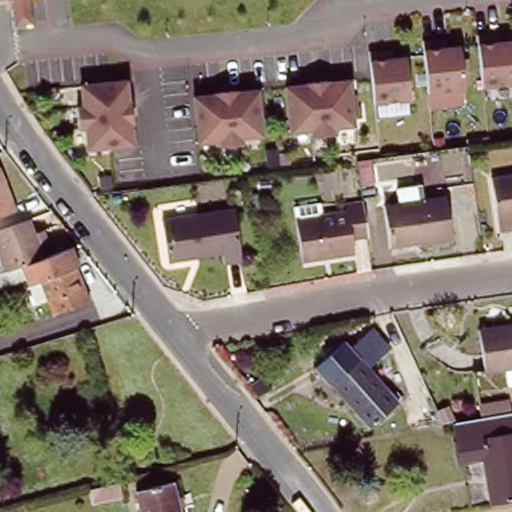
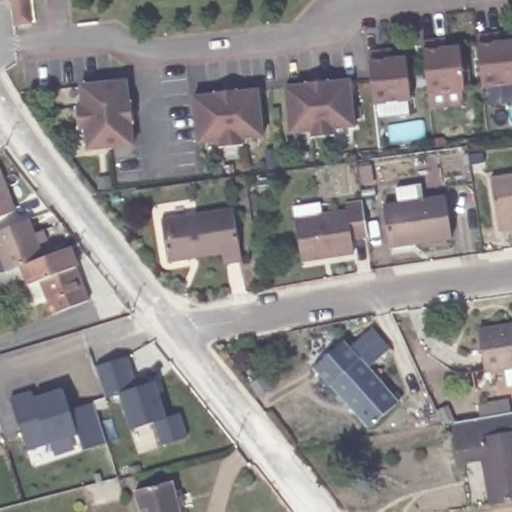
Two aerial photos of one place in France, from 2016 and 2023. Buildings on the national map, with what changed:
unchanged [(0,1),(0,0),(7,0),(0,1)]
unchanged [(7,0),(25,0),(27,26),(11,29),(7,0)]
unchanged [(493,33),(500,32),(501,42),(512,41),(512,85),(481,87),(476,34),(493,33)]
unchanged [(422,40),(438,39),(446,38),(447,48),(459,46),(463,89),(427,93),(422,40)]
unchanged [(367,82),(365,56),(381,54),(388,54),(390,63),(401,62),(405,104),(370,108),(367,82)]
unchanged [(328,128),(330,135),(307,137),(307,131),(285,133),(280,87),(302,84),(301,83),(324,80),(324,82),(345,79),(350,126),(328,128)]
unchanged [(126,124),(128,145),(106,148),(82,151),(80,129),(74,130),(71,108),(77,107),(75,85),(121,80),(124,101),(125,101),(128,124),(126,124)]
unchanged [(242,138),(243,144),(221,147),(220,140),(198,143),(193,96),(215,94),(215,92),(237,90),(237,92),(258,89),(263,136),(242,138)]
unchanged [(0,214),(0,172),(15,208),(0,214)]
unchanged [(512,228),(495,230),(486,178),(512,174),(512,218),(510,218),(512,228)]
unchanged [(391,246),(384,205),(400,202),(397,187),(417,184),(420,198),(446,194),(452,236),(391,246)]
unchanged [(352,239),(355,251),(302,259),(296,218),(348,210),(347,201),(363,198),(368,236),(352,239)]
unchanged [(225,263),(222,252),(170,261),(162,219),(234,207),(244,260),(225,263)]
unchanged [(19,267),(0,274),(0,247),(1,246),(0,242),(0,230),(32,218),(46,257),(19,267)]
unchanged [(57,313),(51,301),(40,305),(30,277),(0,289),(0,274),(19,267),(46,257),(72,248),(93,299),(57,313)]
unchanged [(480,331),(512,326),(512,368),(485,372),(480,331)]
unchanged [(370,431),(331,388),(361,362),(352,352),(374,334),(390,353),(370,370),(400,405),(370,431)]
new [(127,355),(137,386),(155,380),(166,417),(179,412),(187,436),(162,444),(155,421),(132,428),(120,392),(106,398),(95,366),(127,355)]
new [(82,451),(78,435),(49,443),(26,450),(7,397),(30,390),(31,398),(63,389),(71,409),(91,403),(104,444),(82,451)]
unchanged [(483,461),(460,464),(455,426),(512,416),(512,502),(491,506),(483,461)]
unchanged [(173,480),(181,512),(141,512),(136,490),(173,480)]

